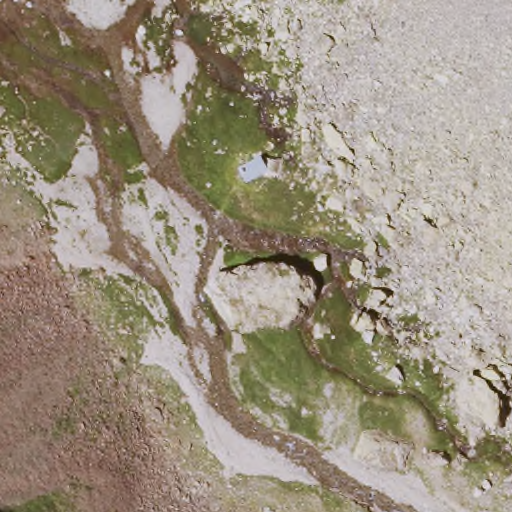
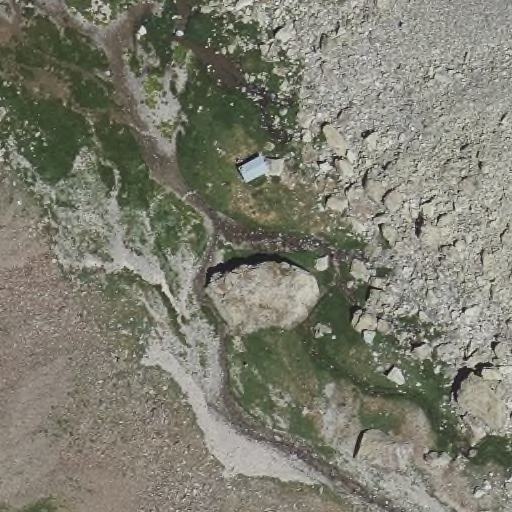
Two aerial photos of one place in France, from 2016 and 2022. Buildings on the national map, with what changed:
unchanged [(266,172),(240,182),(234,165),(245,160),(260,155),(266,172)]

